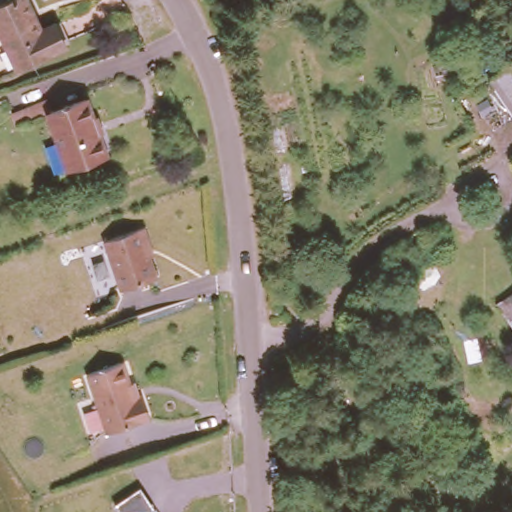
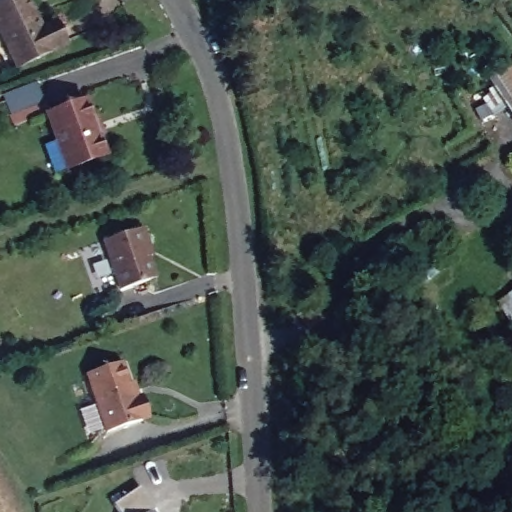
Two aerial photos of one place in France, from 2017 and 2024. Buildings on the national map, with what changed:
unchanged [(35,35),(47,29),(59,49),(15,72),(0,44),(0,9),(16,1),(35,35)]
unchanged [(498,126),(474,87),(482,82),(507,67),(512,74),(512,147),(498,126)]
unchanged [(42,125),(76,105),(105,151),(70,172),(42,125)]
unchanged [(133,229),(138,244),(133,245),(143,277),(114,287),(99,240),(133,229)]
unchanged [(113,363),(126,400),(131,398),(137,421),(98,434),(80,375),(113,363)]
unchanged [(157,512),(119,512),(114,505),(140,487),(157,512)]

